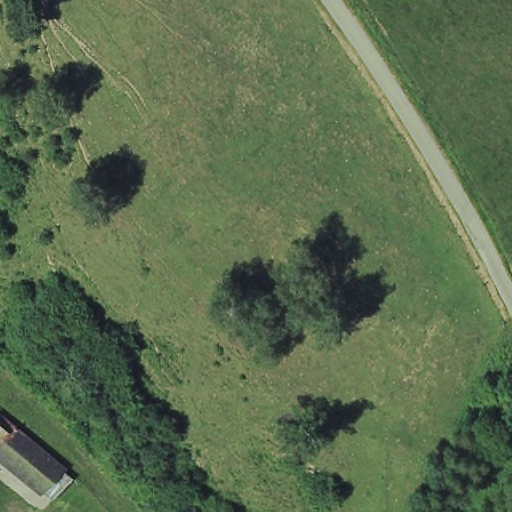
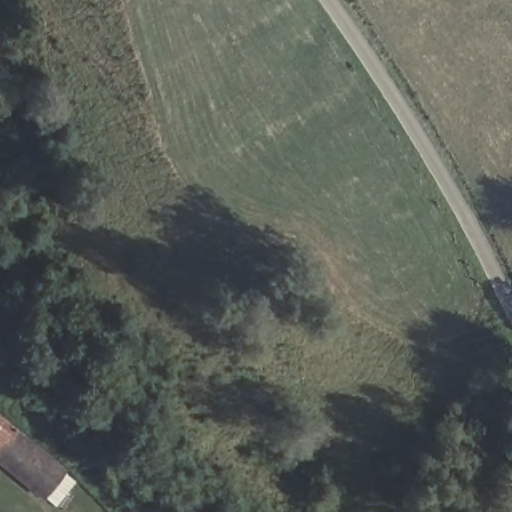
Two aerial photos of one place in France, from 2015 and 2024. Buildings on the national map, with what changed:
unchanged [(36,498),(0,468),(0,420),(63,466),(36,498)]

